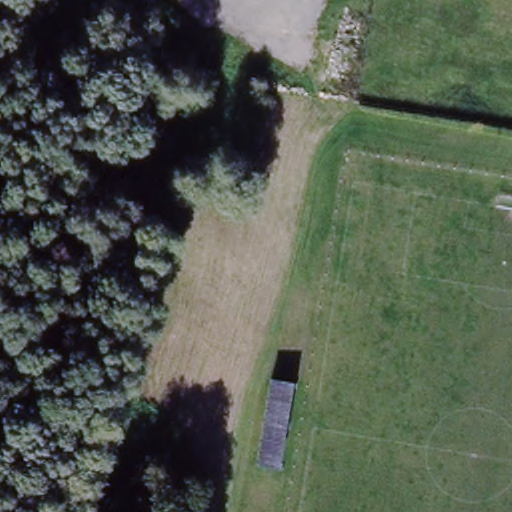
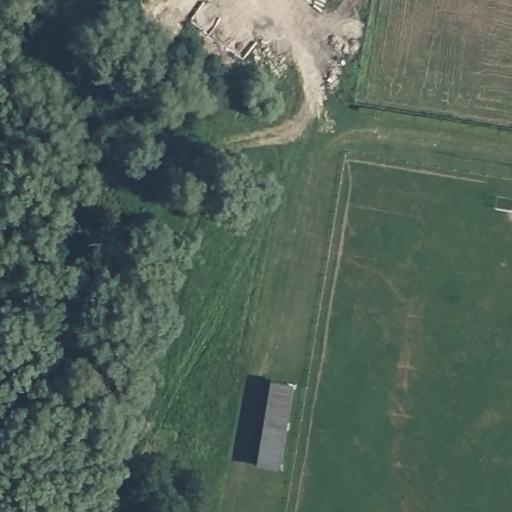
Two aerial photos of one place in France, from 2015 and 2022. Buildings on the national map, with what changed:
unchanged [(277,468),(255,464),(269,378),(291,384),(277,468)]

